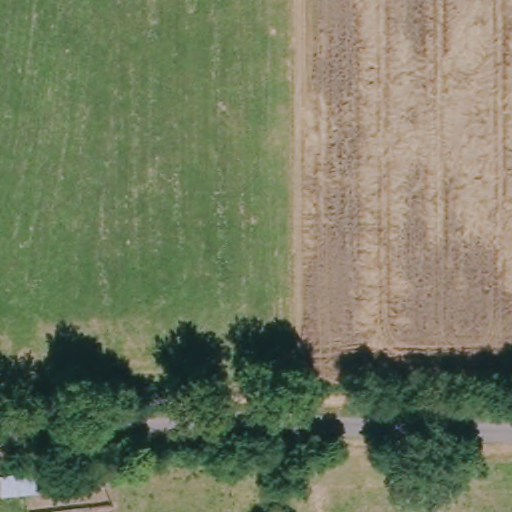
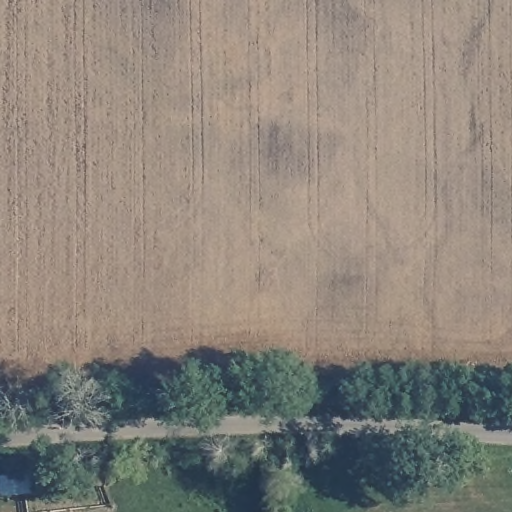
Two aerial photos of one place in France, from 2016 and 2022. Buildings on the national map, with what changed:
unchanged [(38,494),(0,496),(0,478),(35,475),(38,494)]

